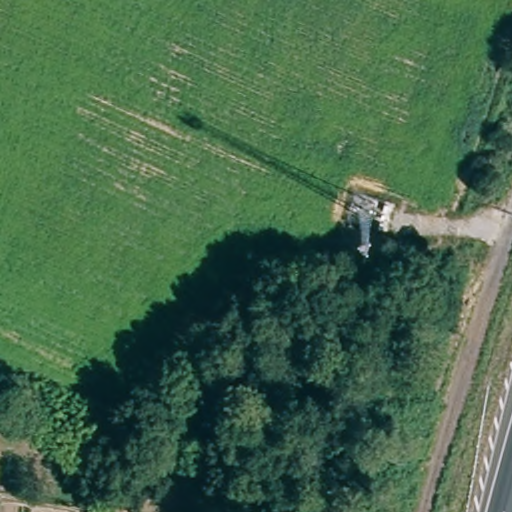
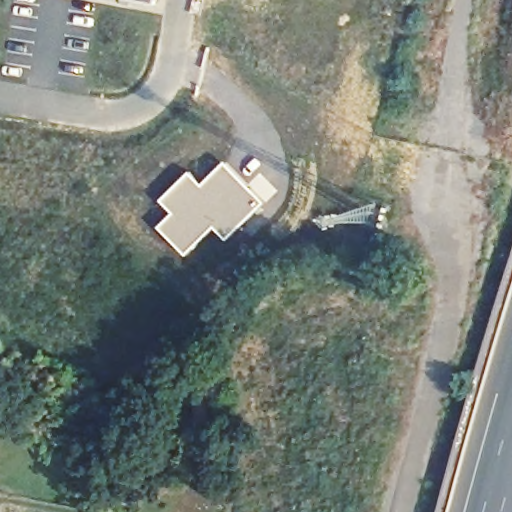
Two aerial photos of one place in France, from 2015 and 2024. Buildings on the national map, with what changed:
new [(172,212),(159,199),(190,169),(203,182),(226,159),(268,201),(228,241),(214,229),(187,256),(158,227),(172,212)]

